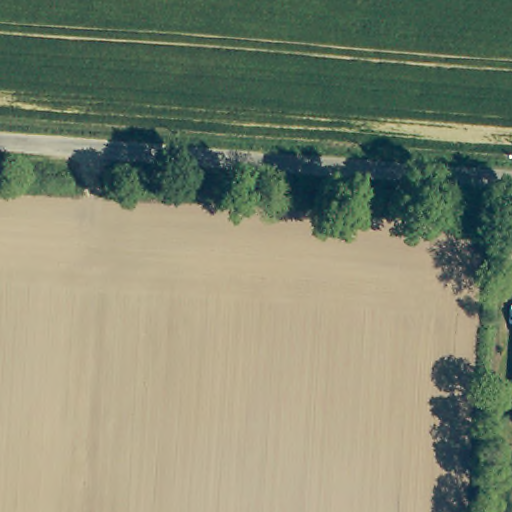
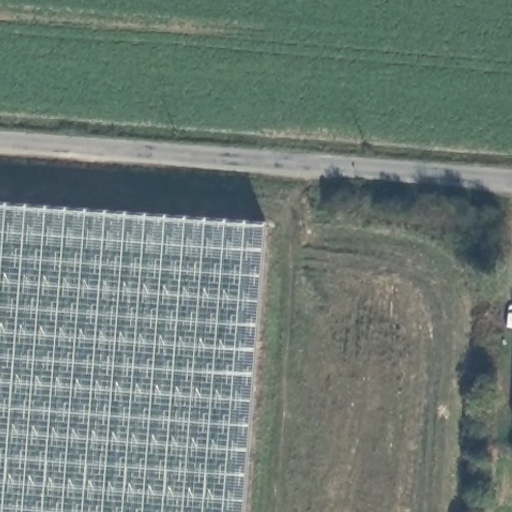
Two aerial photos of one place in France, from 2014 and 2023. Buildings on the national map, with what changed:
new [(246,512),(0,512),(0,204),(267,224),(246,512)]

